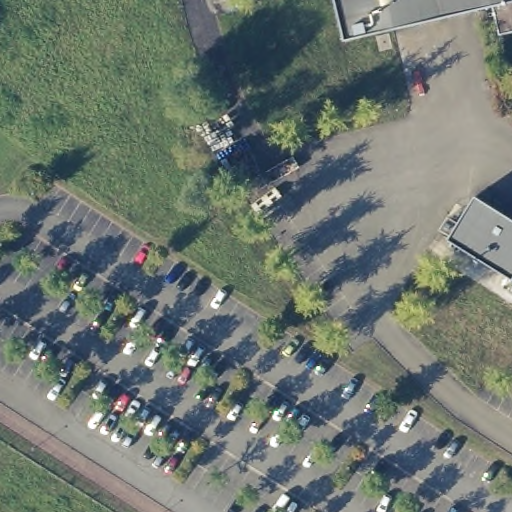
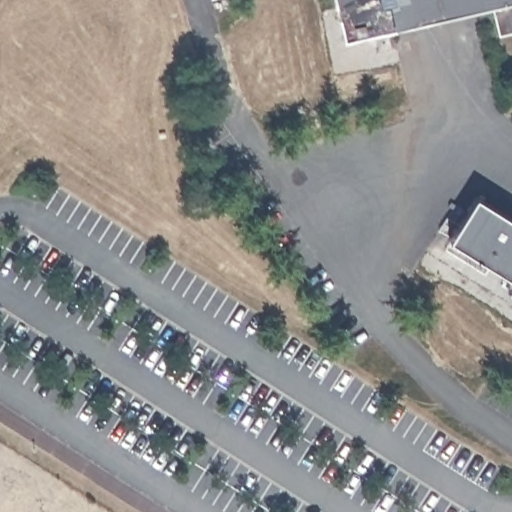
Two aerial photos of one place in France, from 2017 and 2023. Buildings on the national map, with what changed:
unchanged [(499,36),(492,7),(345,41),(335,0),(512,0),(512,32),(499,36)]
unchanged [(449,242),(477,204),(512,225),(512,278),(449,242)]

